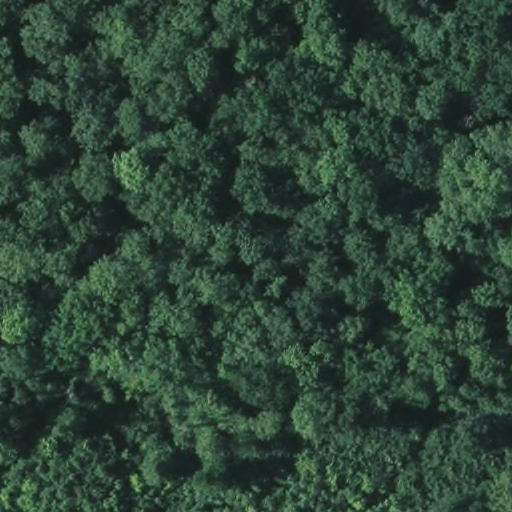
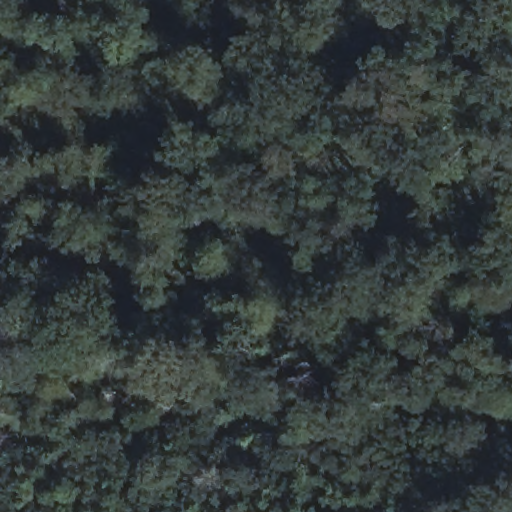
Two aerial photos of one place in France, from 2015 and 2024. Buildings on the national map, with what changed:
[]

